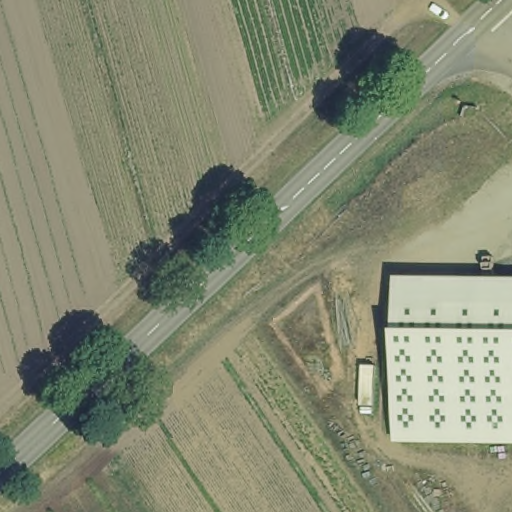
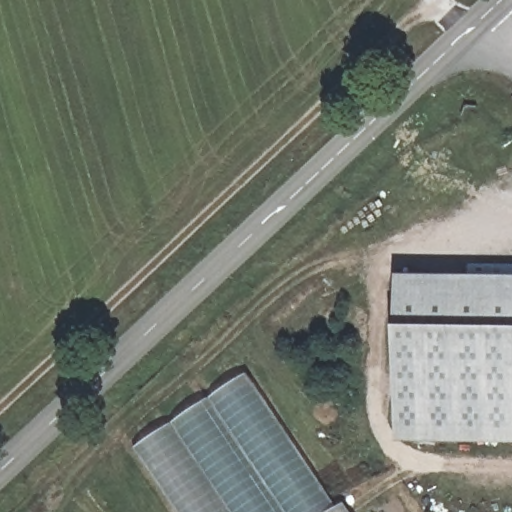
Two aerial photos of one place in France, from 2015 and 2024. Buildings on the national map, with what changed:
unchanged [(512,279),(512,444),(396,442),(397,330),(398,277),(512,279)]
new [(338,509),(347,504),(353,512),(175,512),(134,450),(246,375),(338,509)]

